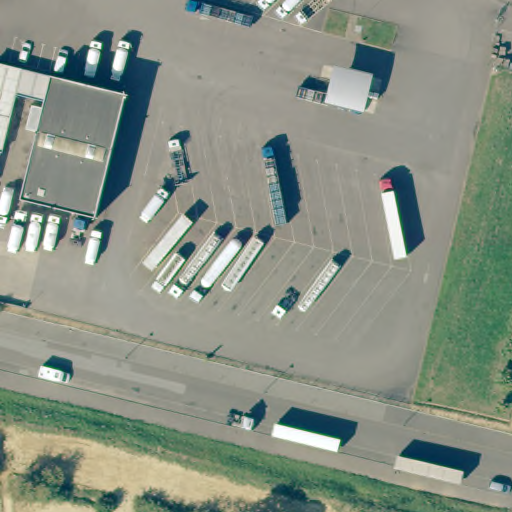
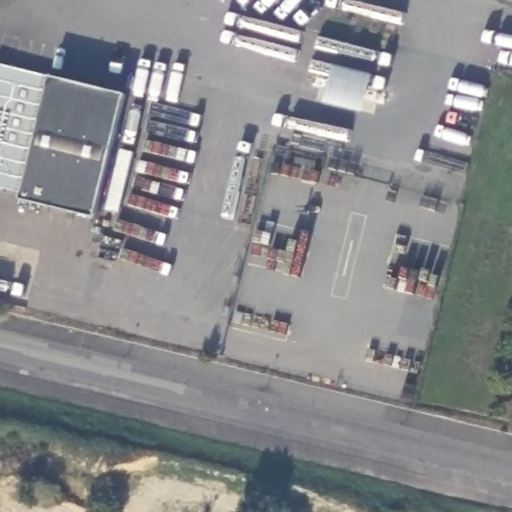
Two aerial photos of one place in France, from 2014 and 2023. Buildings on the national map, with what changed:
unchanged [(384,80),(375,114),(317,100),(325,65),(384,80)]
unchanged [(19,99),(4,156),(0,155),(0,69),(51,81),(45,105),(19,99)]
unchanged [(128,100),(98,224),(22,205),(53,82),(128,100)]

